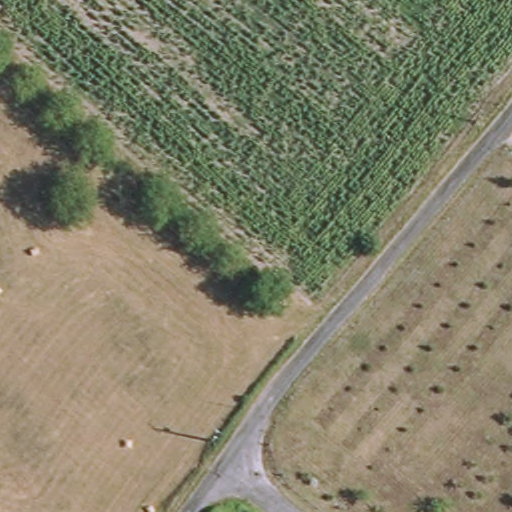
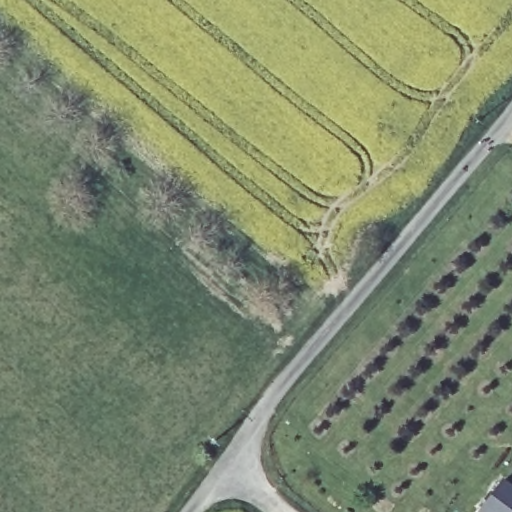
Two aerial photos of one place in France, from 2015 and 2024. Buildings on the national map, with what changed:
new [(505,476),(512,482),(512,512),(480,512),(505,476)]

